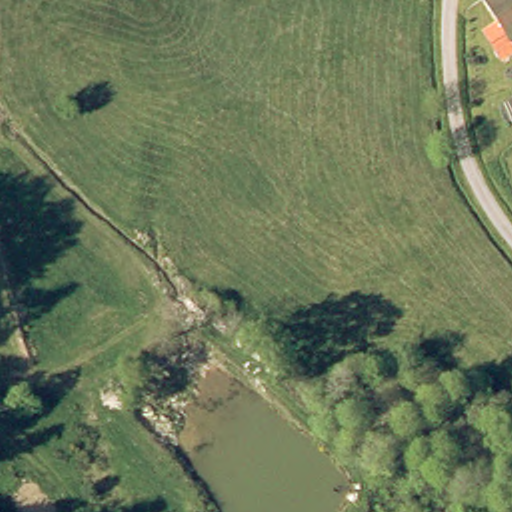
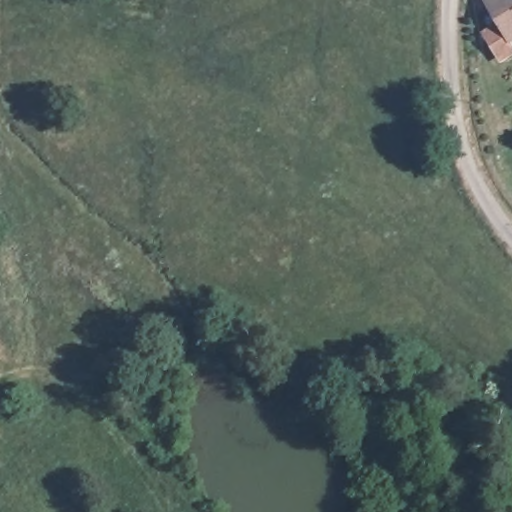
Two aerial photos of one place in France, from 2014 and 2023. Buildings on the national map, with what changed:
unchanged [(490,8),(501,0),(512,0),(512,42),(490,8)]

